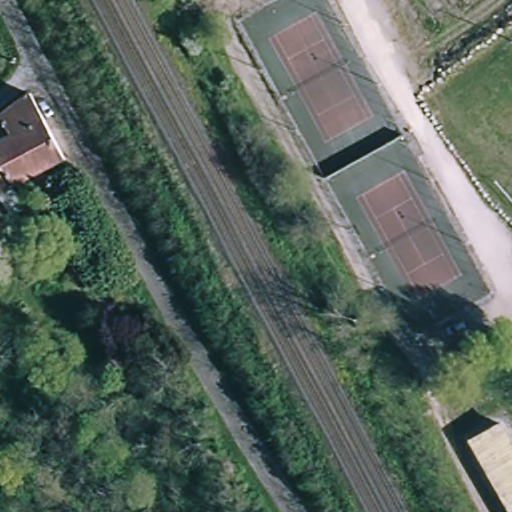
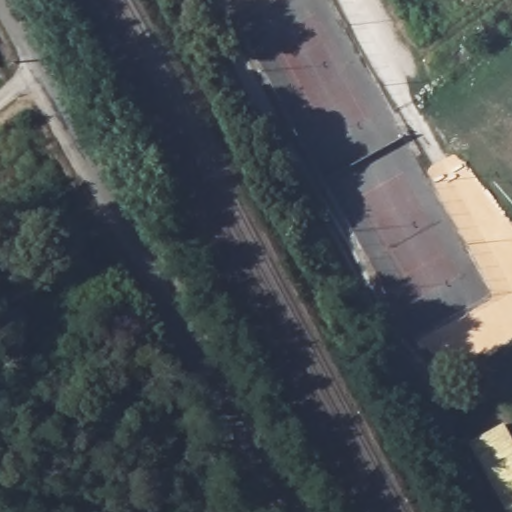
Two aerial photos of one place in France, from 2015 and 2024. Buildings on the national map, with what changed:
demolished [(57,161),(0,200),(0,149),(14,138),(0,119),(25,102),(57,161)]
unchanged [(512,512),(502,512),(463,441),(504,420),(512,436),(512,512)]

